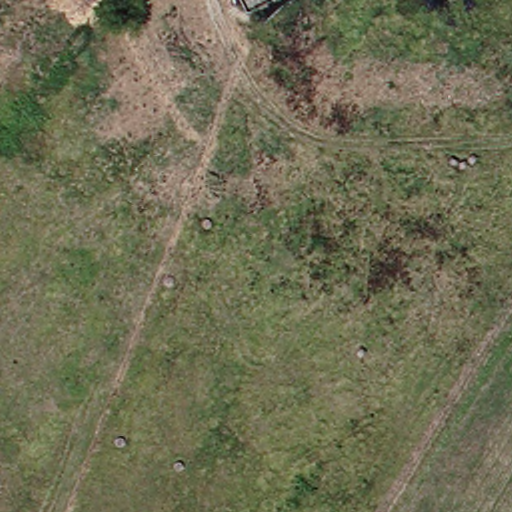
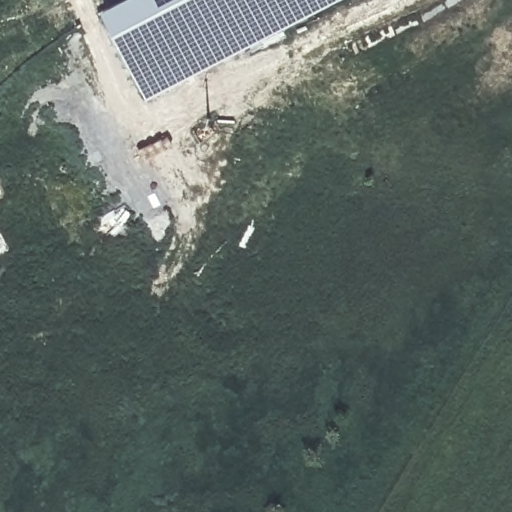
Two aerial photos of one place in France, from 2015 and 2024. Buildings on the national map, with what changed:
new [(339,0),(149,99),(102,10),(120,0),(339,0)]

